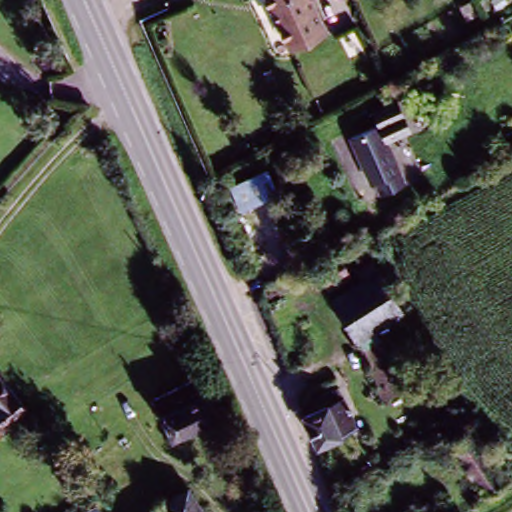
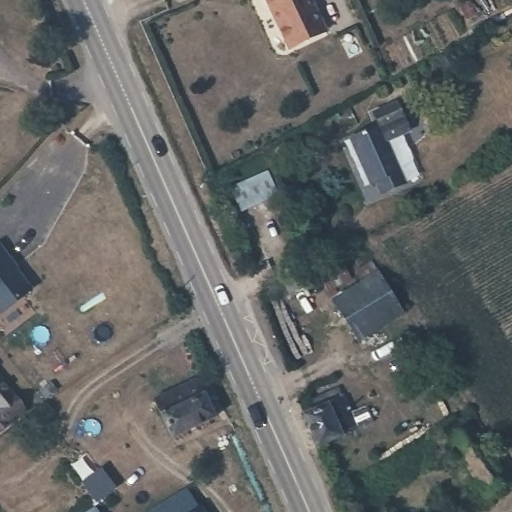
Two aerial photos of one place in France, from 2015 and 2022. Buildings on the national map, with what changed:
unchanged [(281,51),(277,42),(257,0),(305,0),(315,23),(320,32),(281,51)]
unchanged [(386,131),(380,119),(402,108),(415,135),(392,146),(413,190),(397,197),(392,184),(377,192),(357,146),(386,131)]
unchanged [(293,215),(306,239),(290,248),(277,224),(293,215)]
new [(0,314),(0,313),(0,248),(8,258),(15,268),(13,269),(6,259),(30,290),(0,314)]
unchanged [(328,299),(380,268),(405,312),(357,342),(328,299)]
unchanged [(22,417),(0,430),(0,381),(22,417)]
unchanged [(162,433),(150,411),(202,383),(212,402),(203,407),(208,418),(166,439),(162,433)]
unchanged [(295,417),(325,403),(340,434),(310,447),(295,417)]
unchanged [(507,495),(478,510),(445,440),(472,424),(507,495)]
unchanged [(187,512),(140,512),(139,510),(197,481),(207,503),(205,504),(187,512)]
unchanged [(187,512),(205,504),(207,503),(212,512),(187,512)]
unchanged [(88,512),(82,512),(86,510),(88,512)]

